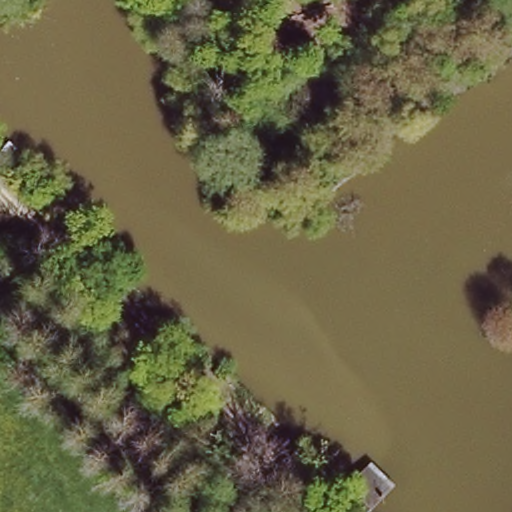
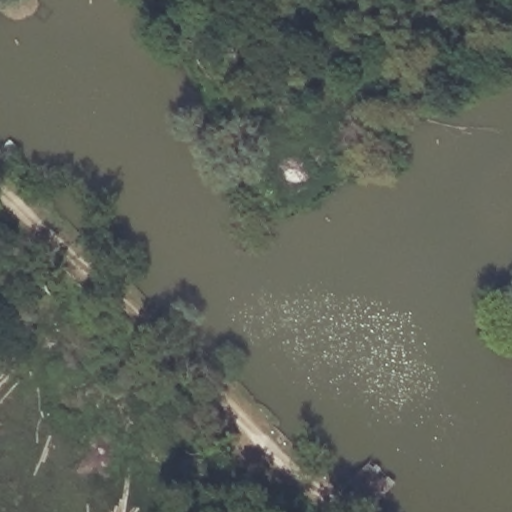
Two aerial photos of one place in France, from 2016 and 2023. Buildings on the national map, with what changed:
unchanged [(361,462),(365,466),(382,484),(365,503),(341,481),(361,462)]

